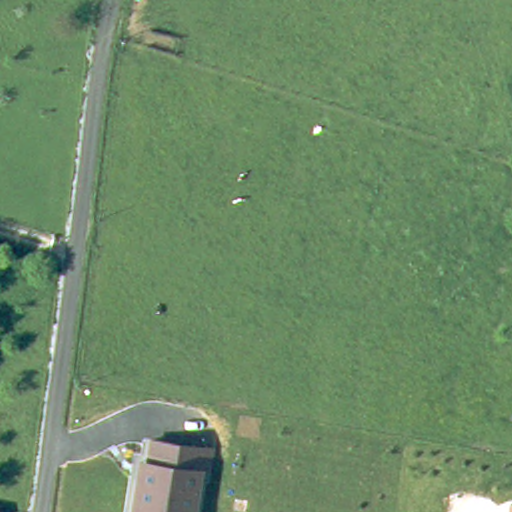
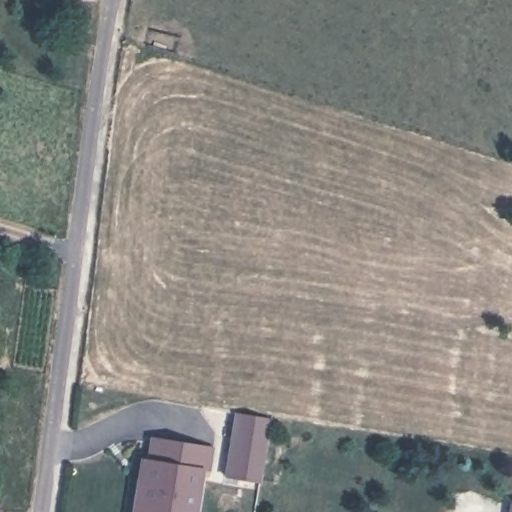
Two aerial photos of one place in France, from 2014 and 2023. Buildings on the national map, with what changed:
new [(267,419),(258,481),(225,476),(232,414),(267,419)]
unchanged [(193,510),(178,508),(172,512),(131,512),(137,479),(144,480),(151,438),(203,446),(193,510)]
unchanged [(512,504),(512,512),(506,512),(508,503),(512,504)]

